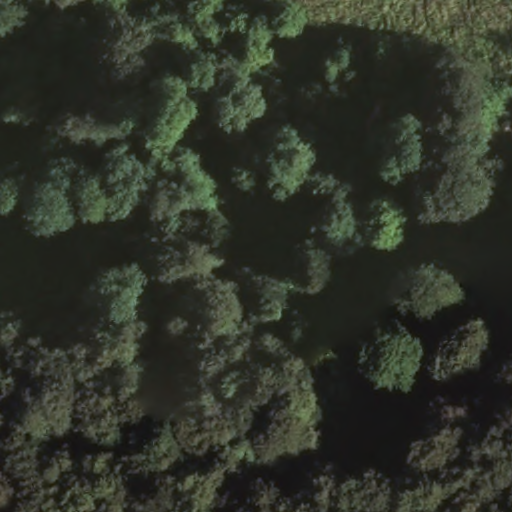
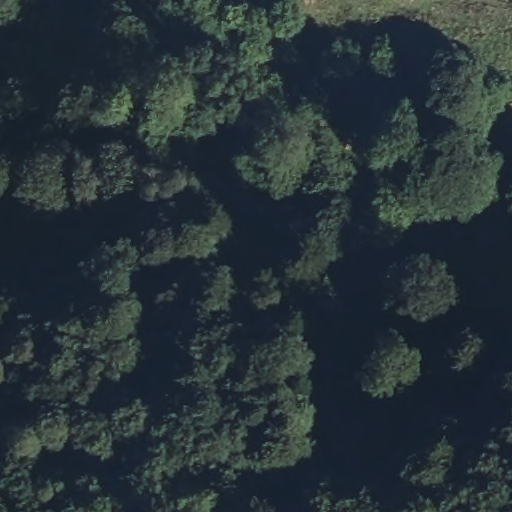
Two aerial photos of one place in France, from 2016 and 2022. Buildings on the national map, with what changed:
unchanged [(380,95),(416,118),(396,148),(360,124),(380,95)]

